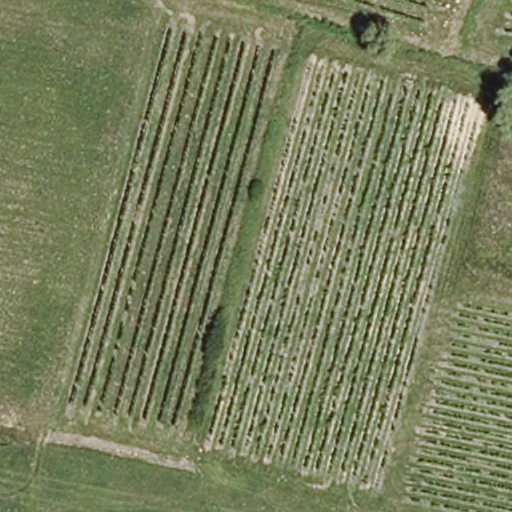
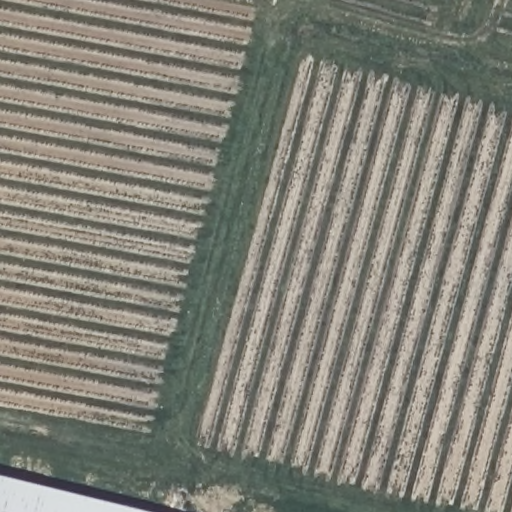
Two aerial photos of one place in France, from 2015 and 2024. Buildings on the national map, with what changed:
new [(0,475),(150,512),(0,512),(0,475)]

